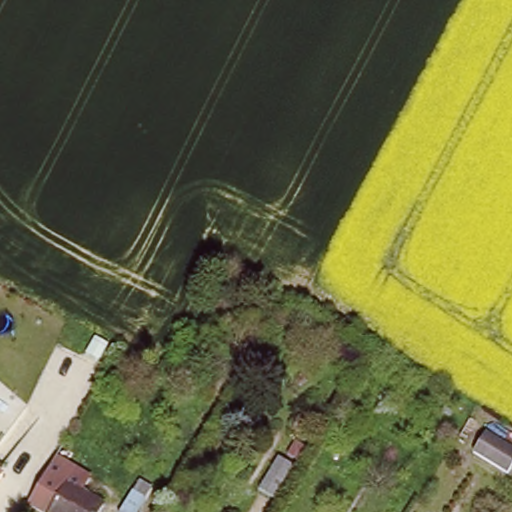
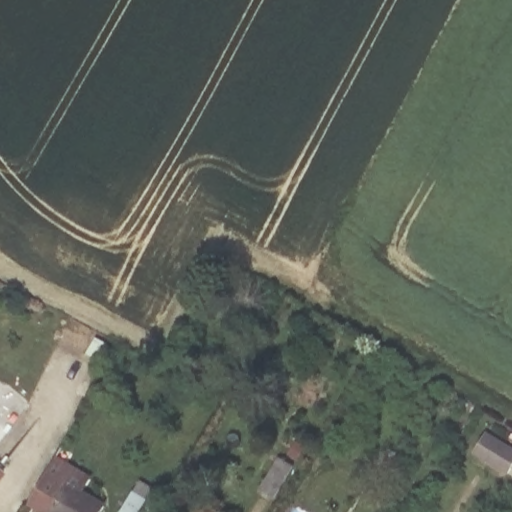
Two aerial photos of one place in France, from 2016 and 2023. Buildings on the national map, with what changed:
unchanged [(485,435),(512,452),(512,468),(508,473),(473,452),(485,435)]
unchanged [(283,457),(295,464),(275,495),(264,488),(283,457)]
unchanged [(50,468),(108,500),(101,512),(58,512),(32,498),(50,468)]
unchanged [(0,474),(0,471),(1,472),(0,474)]
unchanged [(134,485),(135,486),(141,477),(150,483),(145,492),(146,493),(135,512),(126,512),(120,508),(122,504),(134,485)]

